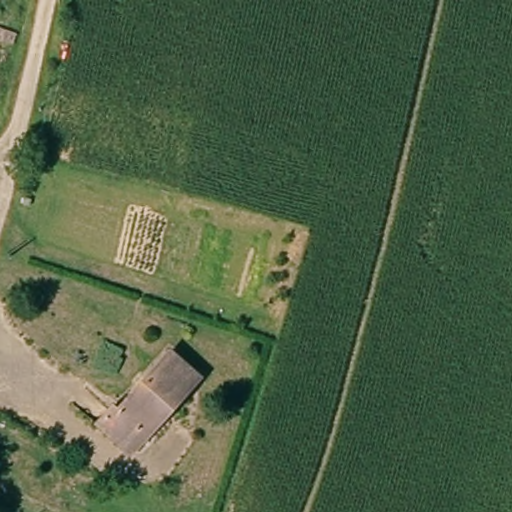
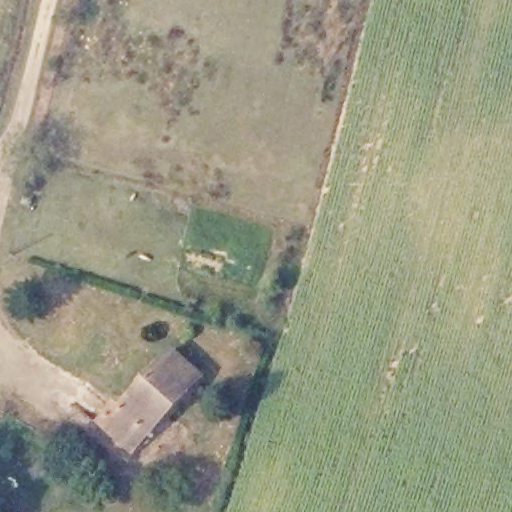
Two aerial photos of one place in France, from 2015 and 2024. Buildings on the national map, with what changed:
unchanged [(204,381),(151,440),(143,433),(130,448),(101,422),(116,406),(123,412),(174,355),(204,381)]

